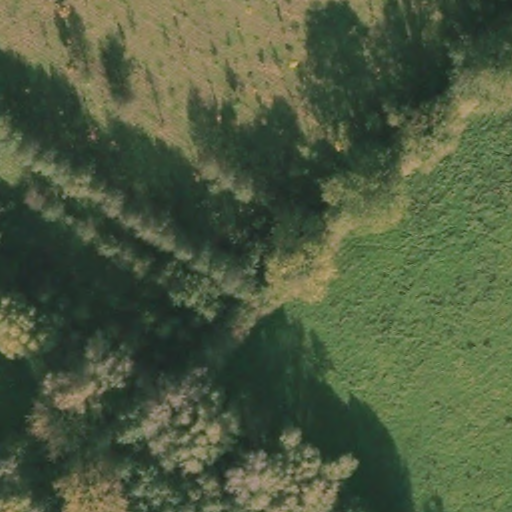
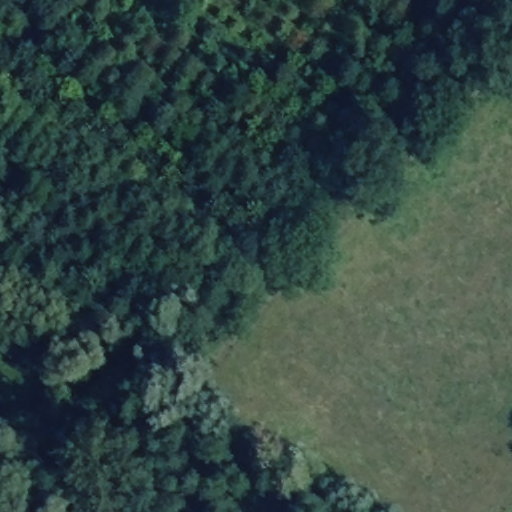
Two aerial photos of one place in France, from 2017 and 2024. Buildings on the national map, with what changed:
[]

